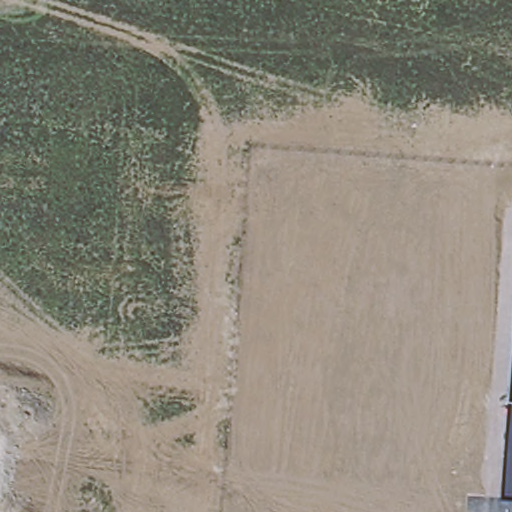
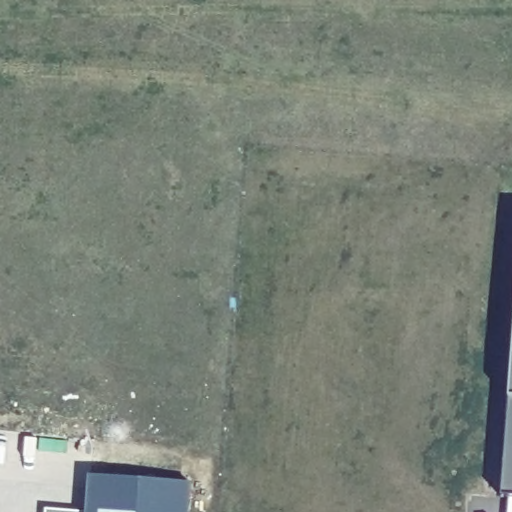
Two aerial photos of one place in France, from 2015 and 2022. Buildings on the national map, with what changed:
unchanged [(512,349),(512,497),(500,497),(508,399),(512,349)]
new [(191,482),(189,512),(86,512),(88,475),(191,482)]
new [(80,512),(45,512),(45,509),(80,512)]

